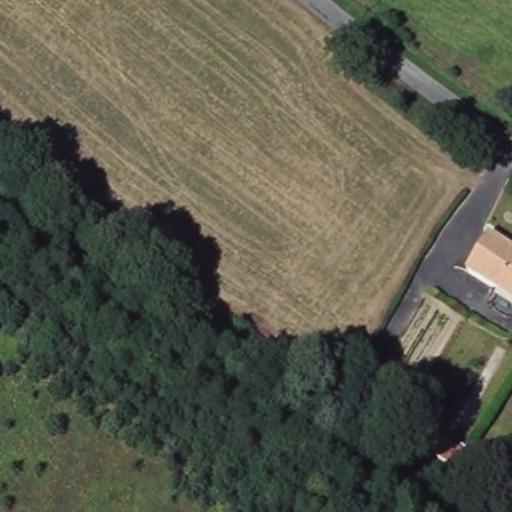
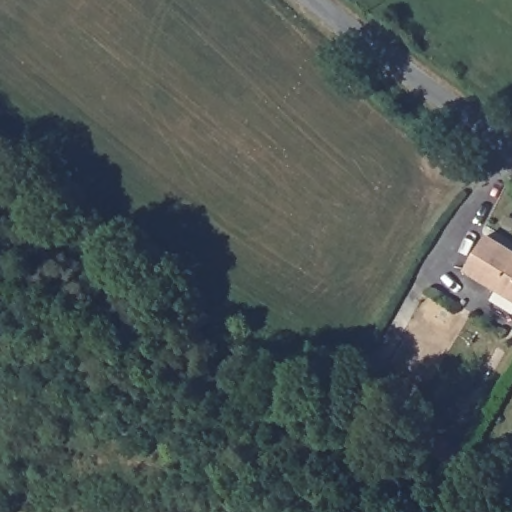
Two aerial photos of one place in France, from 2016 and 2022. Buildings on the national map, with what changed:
unchanged [(488,232),(512,246),(512,294),(467,267),(488,232)]
unchanged [(424,440),(445,452),(432,470),(412,458),(424,440)]
unchanged [(484,470),(512,486),(512,512),(509,512),(472,493),(484,470)]

